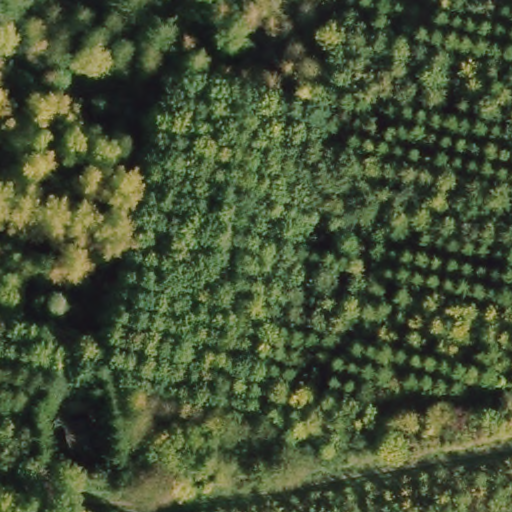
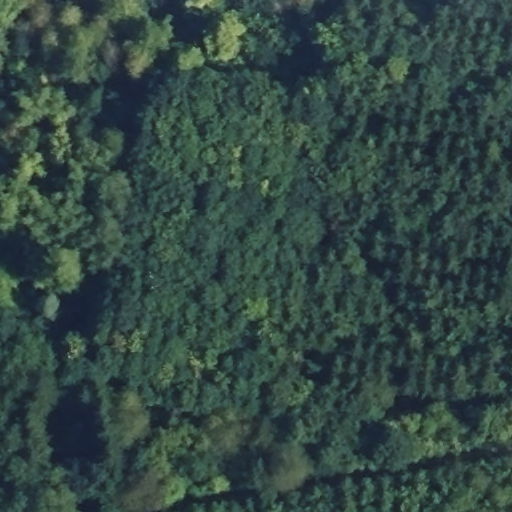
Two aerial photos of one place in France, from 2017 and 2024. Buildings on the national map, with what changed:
unchanged [(100,453),(73,459),(65,423),(93,417),(100,453)]

